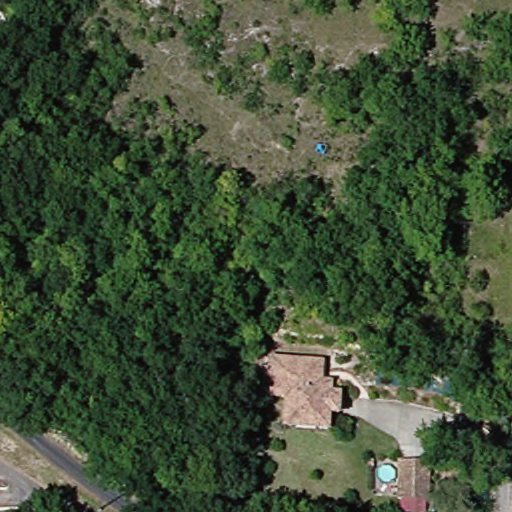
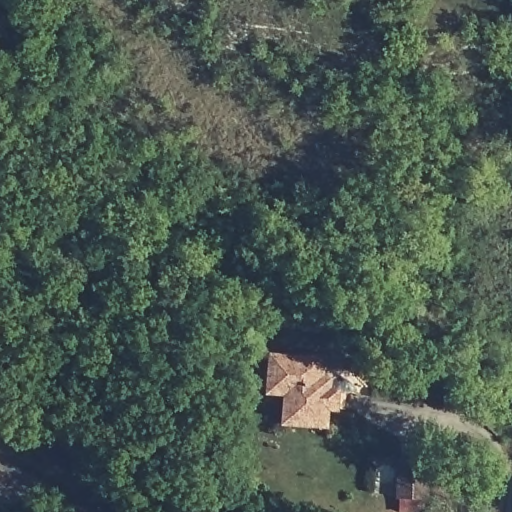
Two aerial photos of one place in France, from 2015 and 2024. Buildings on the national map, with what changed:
unchanged [(275,343),(276,343),(326,344),(327,378),(346,378),(345,401),(333,401),(315,401),(314,409),(288,409),(287,386),(268,385),(275,343)]
unchanged [(432,459),(434,500),(407,501),(405,460),(432,459)]

